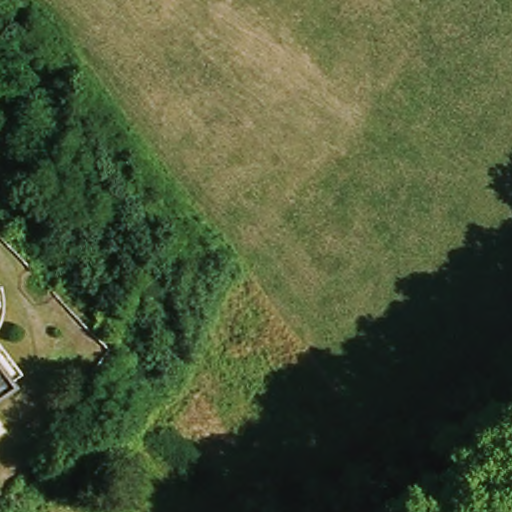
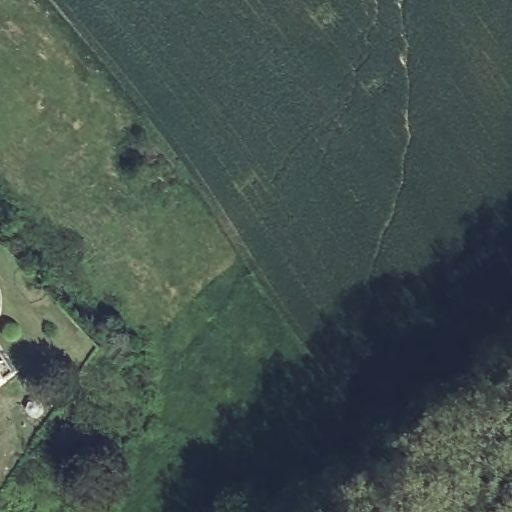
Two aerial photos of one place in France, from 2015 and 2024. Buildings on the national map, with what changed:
unchanged [(4,377),(0,380),(0,371),(4,377)]

